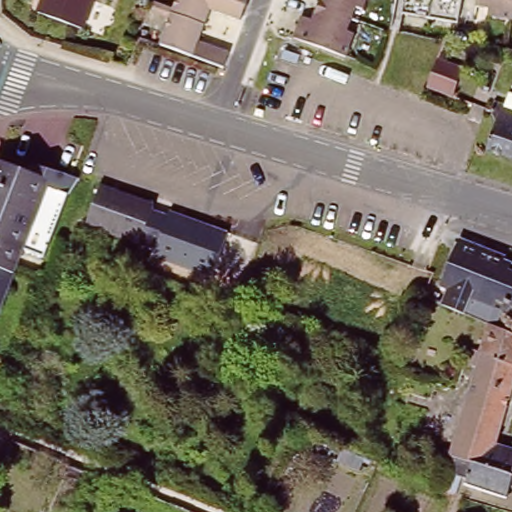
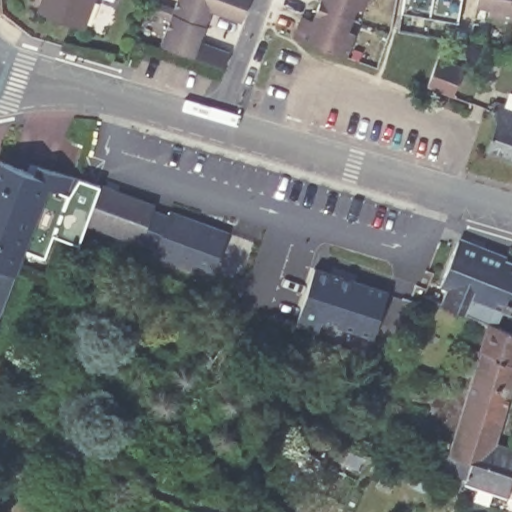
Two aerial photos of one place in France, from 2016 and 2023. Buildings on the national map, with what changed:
unchanged [(34,9),(37,0),(87,0),(77,26),(34,9)]
unchanged [(225,68),(218,66),(162,43),(172,18),(147,8),(150,0),(155,0),(177,8),(179,0),(251,0),(242,22),(217,11),(211,8),(200,38),(207,41),(232,51),(225,68)]
unchanged [(321,0),(369,0),(367,6),(359,3),(351,27),(357,29),(350,51),(317,40),(297,32),(302,20),(305,11),(315,16),(321,0)]
unchanged [(402,0),(458,0),(455,17),(439,15),(400,8),(402,0)]
unchanged [(490,8),(482,7),(480,6),(478,6),(479,0),(512,0),(512,19),(489,15),(490,8)]
unchanged [(455,65),(447,93),(426,85),(435,58),(455,65)]
unchanged [(497,118),(494,113),(497,99),(512,104),(512,154),(490,146),(497,118)]
unchanged [(37,177),(40,167),(82,180),(67,196),(52,236),(50,243),(25,234),(0,307),(0,164),(37,177)]
unchanged [(89,219),(102,181),(159,200),(141,236),(89,219)]
unchanged [(170,217),(172,212),(230,234),(212,278),(150,255),(154,243),(141,236),(154,211),(170,217)]
unchanged [(498,321),(489,317),(442,298),(449,281),(442,278),(459,236),(479,243),(512,257),(512,309),(505,306),(498,321)]
new [(312,267),(387,294),(370,341),(295,314),(312,267)]
unchanged [(489,317),(498,321),(512,326),(512,360),(480,345),(489,317)]
unchanged [(507,490),(465,477),(466,472),(443,464),(475,361),(465,356),(468,341),(480,345),(512,360),(512,387),(497,437),(512,442),(512,481),(510,481),(507,490)]

